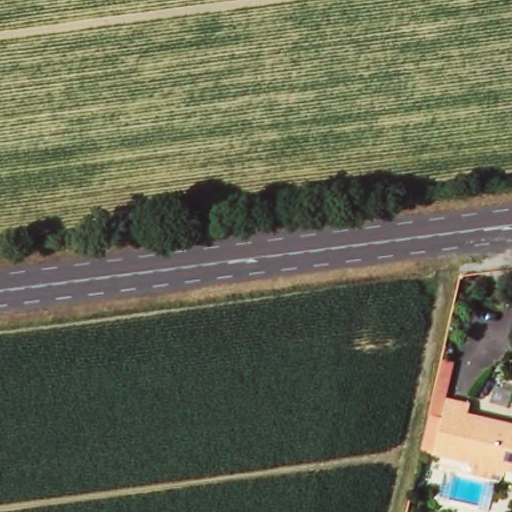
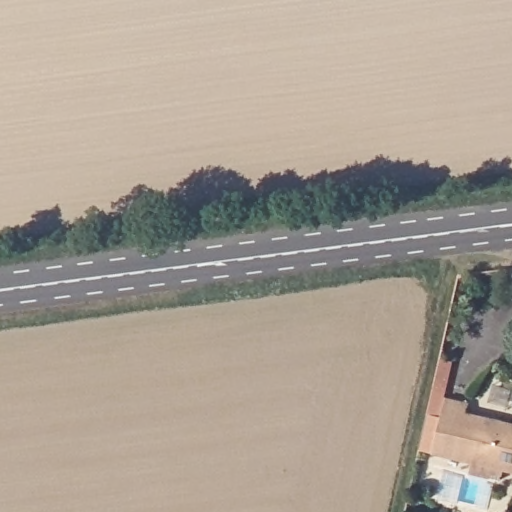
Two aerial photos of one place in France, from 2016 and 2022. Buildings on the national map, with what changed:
unchanged [(443,388),(434,387),(438,372),(441,356),(452,357),(443,388)]
unchanged [(499,467),(465,472),(467,462),(420,450),(425,430),(428,413),(437,414),(440,398),(466,403),(466,412),(512,423),(512,468),(511,470),(499,467)]

